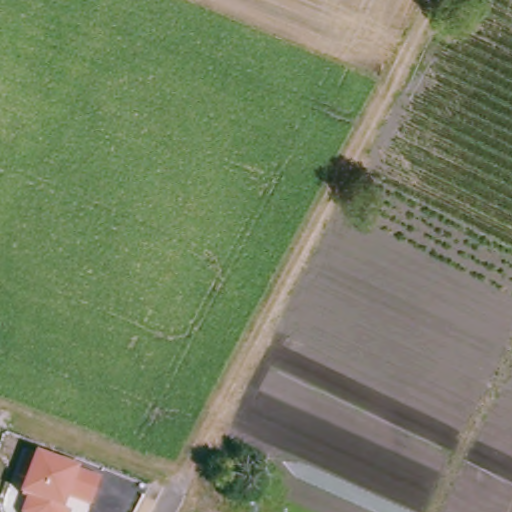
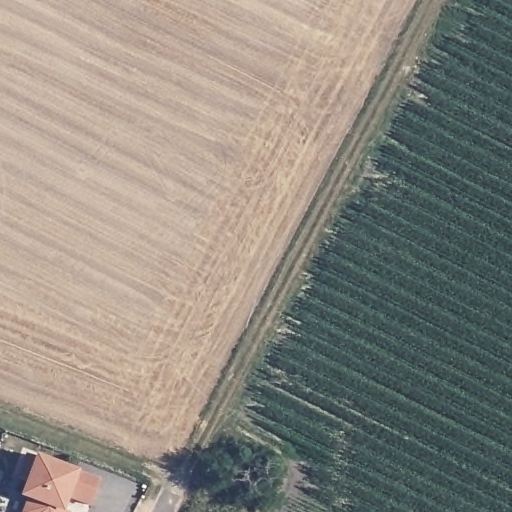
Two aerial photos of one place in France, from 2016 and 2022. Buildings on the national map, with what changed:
unchanged [(92,510),(71,501),(68,512),(21,512),(23,501),(19,499),(25,483),(16,480),(24,456),(36,460),(82,474),(103,482),(92,510)]

